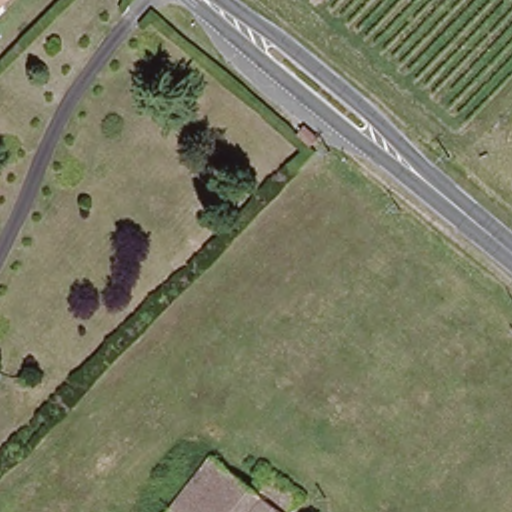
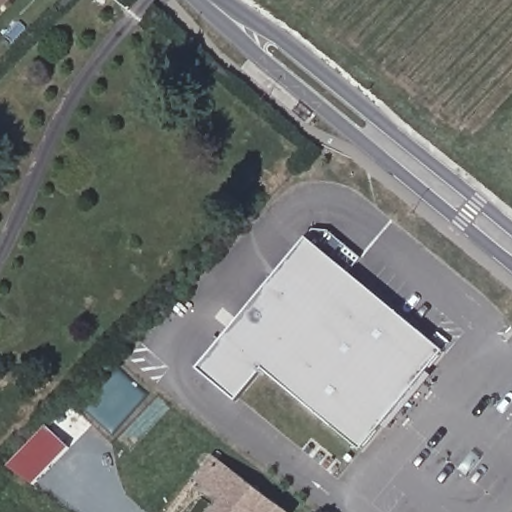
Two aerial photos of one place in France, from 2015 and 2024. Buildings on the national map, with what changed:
unchanged [(0,9),(0,0),(9,0),(0,9)]
unchanged [(283,135),(290,127),(301,138),(295,145),(283,135)]
new [(360,260),(348,275),(305,240),(313,231),(322,230),(360,260)]
new [(305,240),(348,275),(443,354),(361,453),(263,371),(236,403),(197,370),(305,240)]
unchanged [(173,512),(215,456),(247,480),(266,495),(284,512),(173,512)]

